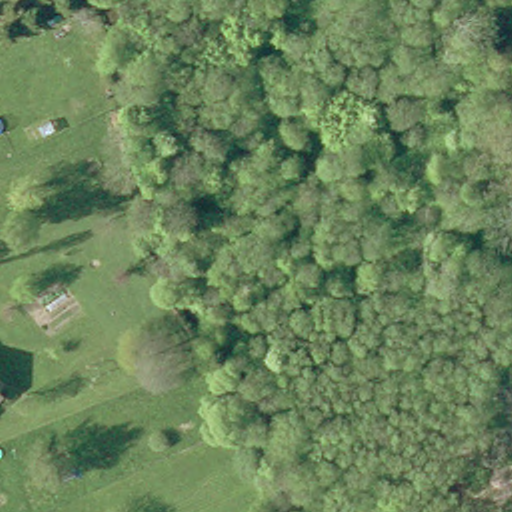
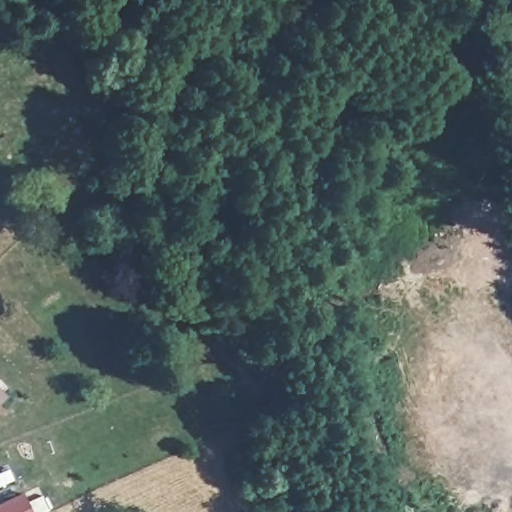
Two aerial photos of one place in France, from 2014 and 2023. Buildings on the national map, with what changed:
unchanged [(5,397),(0,401),(0,392),(5,397)]
new [(26,497),(31,512),(0,512),(0,506),(26,497)]

